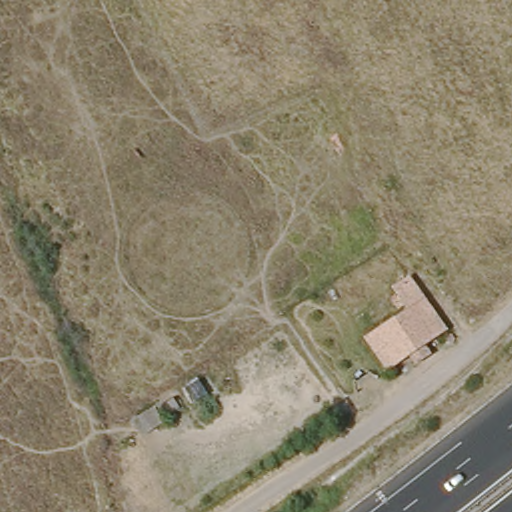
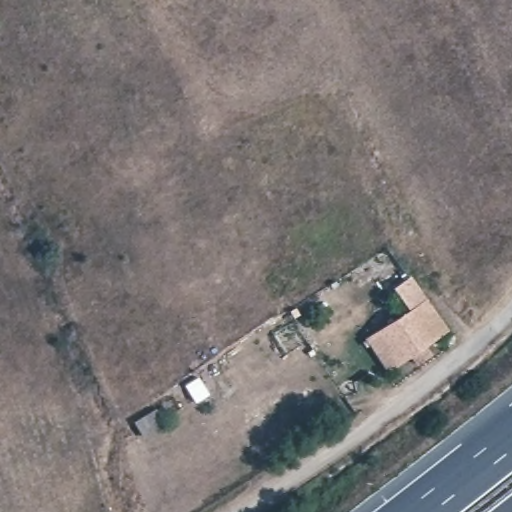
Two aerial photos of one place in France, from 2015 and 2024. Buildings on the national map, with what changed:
unchanged [(363,337),(399,307),(393,298),(387,290),(406,277),(445,330),(388,374),(375,358),(363,337)]

